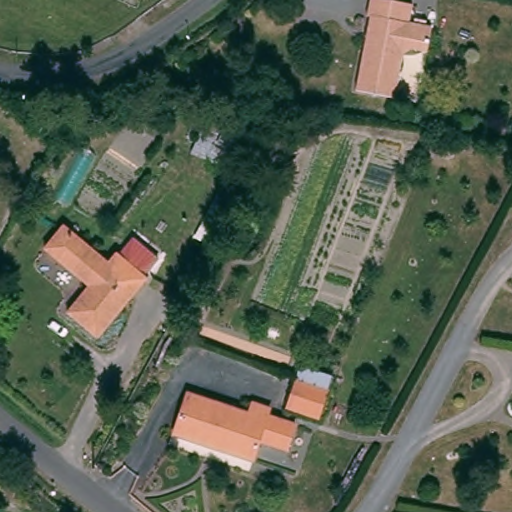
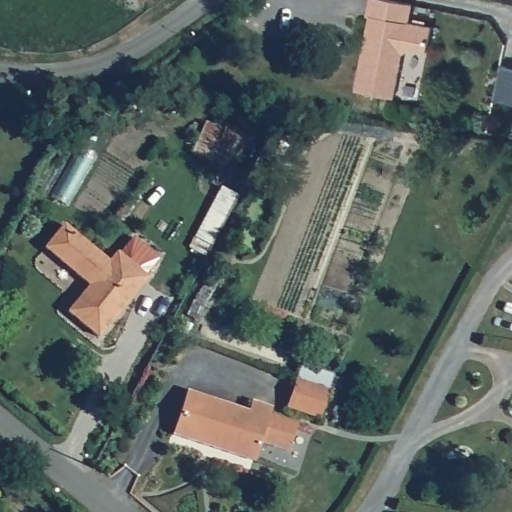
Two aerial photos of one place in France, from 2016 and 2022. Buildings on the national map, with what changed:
unchanged [(394,97),(356,90),(371,15),(367,15),(370,0),(395,0),(412,4),(408,28),(424,31),(419,56),(403,53),(394,97)]
new [(512,66),(512,102),(493,99),(500,64),(512,66)]
unchanged [(206,123),(224,130),(228,123),(245,133),(240,143),(248,147),(241,162),(232,158),(224,172),(194,157),(206,123)]
unchanged [(103,337),(72,312),(95,285),(50,248),(69,225),(113,262),(121,253),(152,278),(103,337)]
unchanged [(134,237),(159,259),(146,274),(121,253),(134,237)]
unchanged [(286,407),(296,379),(300,366),(332,376),(328,390),(319,419),(286,407)]
unchanged [(287,450),(259,441),(252,461),(174,435),(188,392),(248,412),(251,402),(270,408),(268,415),(295,424),(287,450)]

